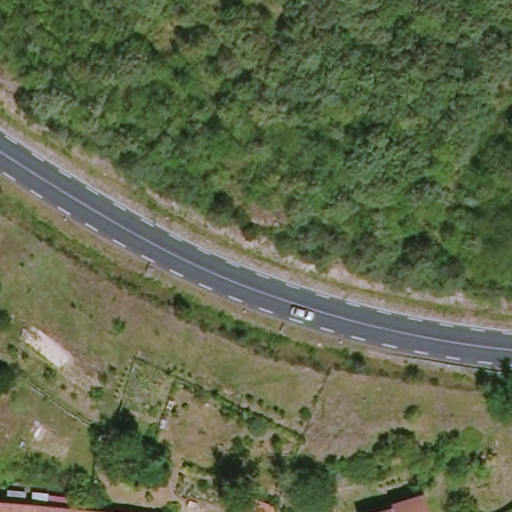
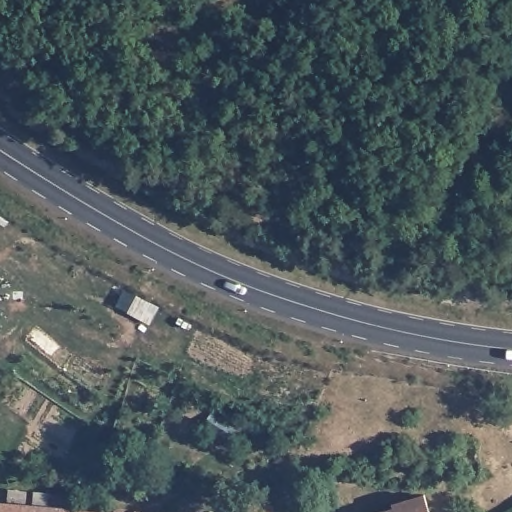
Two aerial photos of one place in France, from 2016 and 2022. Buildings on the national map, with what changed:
unchanged [(397,512),(396,508),(426,498),(430,512),(397,512)]
unchanged [(100,512),(0,512),(0,502),(96,511),(100,512)]
unchanged [(279,512),(249,512),(256,502),(279,512)]

